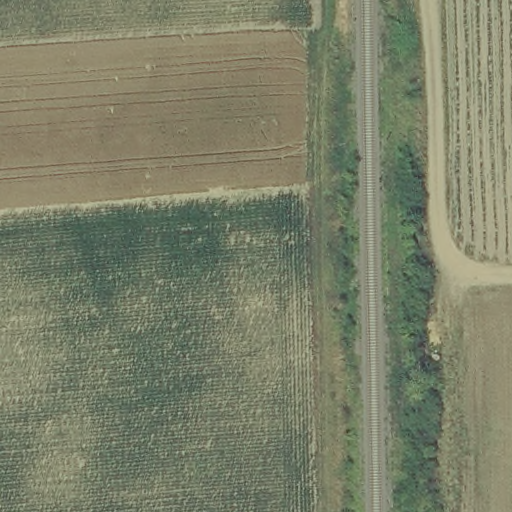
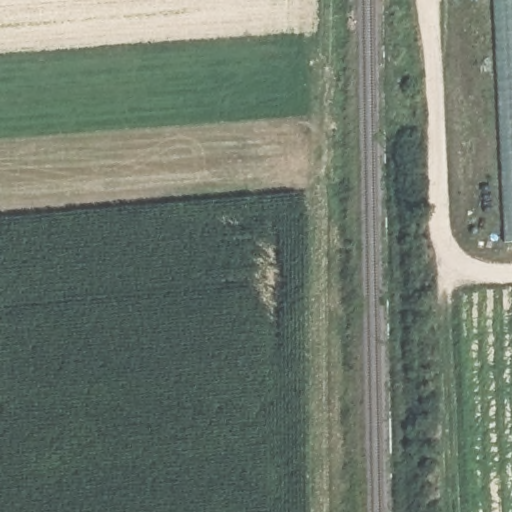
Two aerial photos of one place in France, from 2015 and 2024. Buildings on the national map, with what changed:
new [(502,247),(491,0),(512,0),(512,246),(502,247)]

